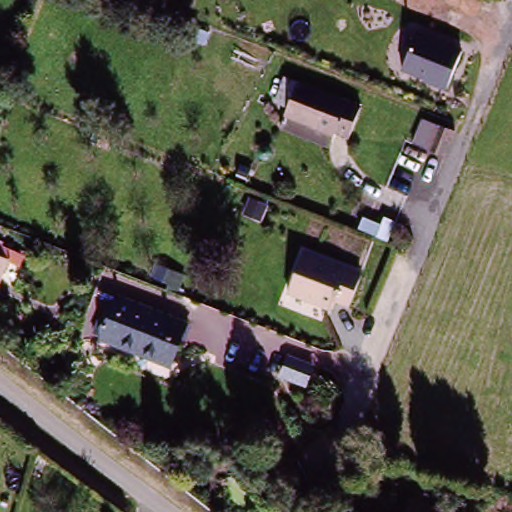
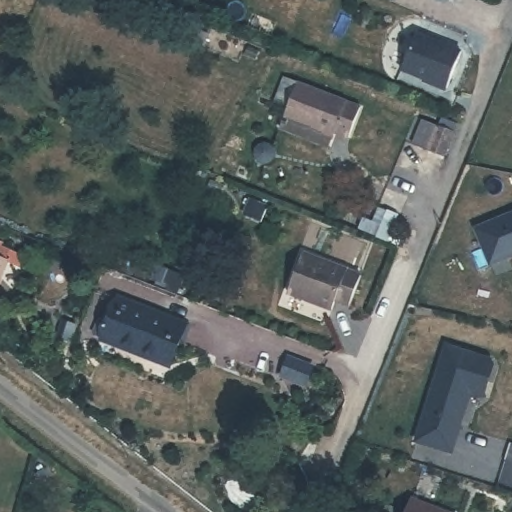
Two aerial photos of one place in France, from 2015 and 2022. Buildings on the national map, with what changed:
unchanged [(465,52),(448,94),(400,72),(415,32),(465,52)]
unchanged [(334,133),(320,126),(311,144),(266,123),(285,77),(346,104),(334,133)]
unchanged [(438,148),(420,141),(433,106),(451,114),(438,148)]
new [(512,212),(512,252),(488,260),(475,226),(512,212)]
unchanged [(357,310),(345,304),(338,316),(290,297),(307,253),(368,279),(357,310)]
unchanged [(190,324),(182,351),(178,368),(105,346),(105,342),(97,339),(99,332),(101,325),(109,327),(111,321),(116,300),(120,301),(190,324)]
new [(445,342),(487,356),(490,362),(485,378),(480,377),(475,392),(467,389),(447,448),(412,436),(445,342)]
unchanged [(277,351),(304,359),(299,378),(272,370),(277,351)]
demolished [(510,408),(512,409),(512,459),(498,455),(510,408)]
unchanged [(406,512),(410,500),(440,512),(406,512)]

